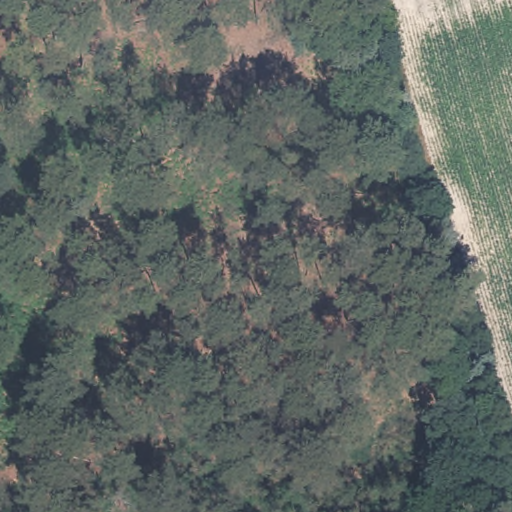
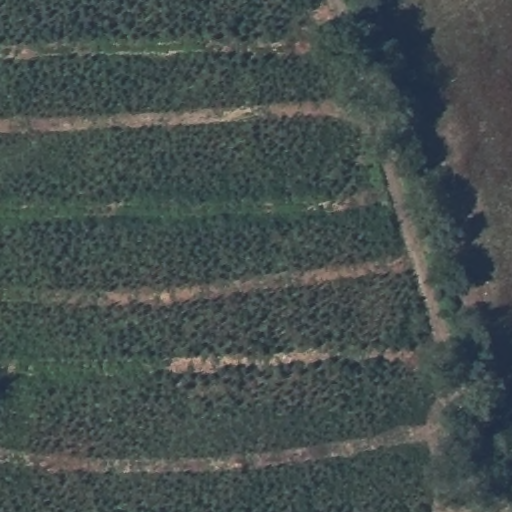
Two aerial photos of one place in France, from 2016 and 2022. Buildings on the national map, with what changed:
[]

